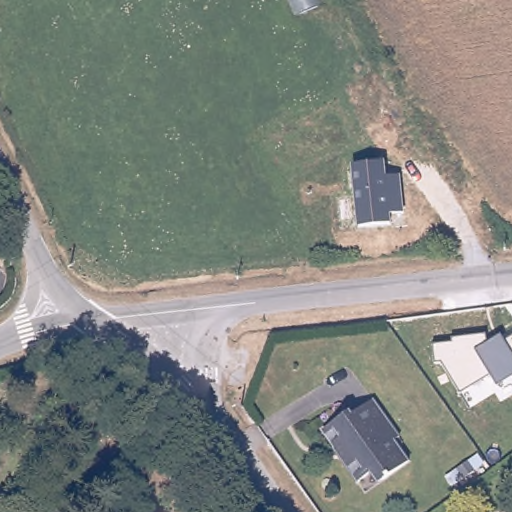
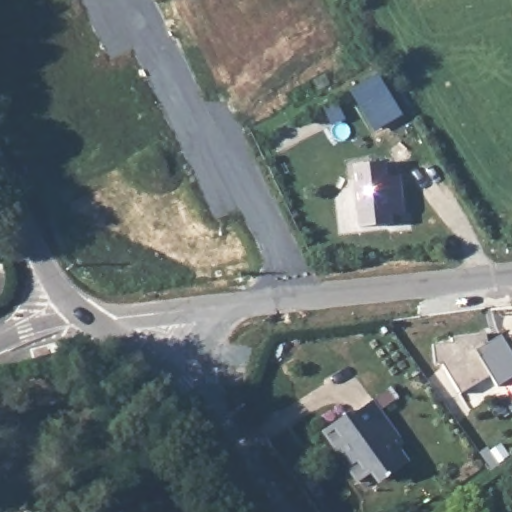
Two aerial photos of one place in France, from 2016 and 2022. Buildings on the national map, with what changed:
new [(377,75),(402,116),(375,132),(350,92),(377,75)]
unchanged [(353,165),(384,162),(385,176),(398,176),(402,212),(389,214),(390,223),(358,226),(353,165)]
unchanged [(435,363),(432,345),(451,342),(452,338),(487,335),(488,342),(501,335),(504,341),(512,336),(512,376),(496,385),(490,375),(460,392),(440,362),(435,363)]
unchanged [(353,411),(357,416),(378,402),(403,440),(397,445),(412,466),(385,482),(377,473),(355,487),(339,467),(342,462),(321,433),(353,411)]
unchanged [(512,448),(511,446),(512,444),(512,448)]

